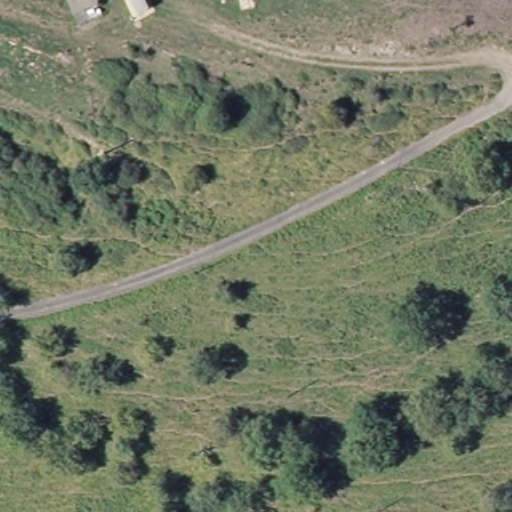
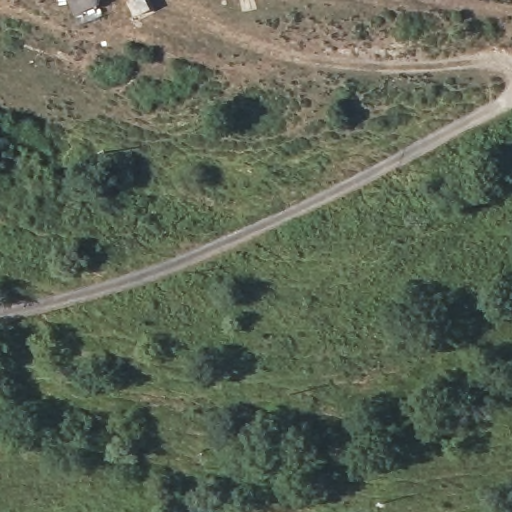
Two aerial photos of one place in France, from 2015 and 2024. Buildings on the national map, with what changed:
unchanged [(101,0),(104,5),(77,16),(69,0),(101,0)]
unchanged [(168,0),(171,8),(129,21),(121,4),(132,0),(168,0)]

